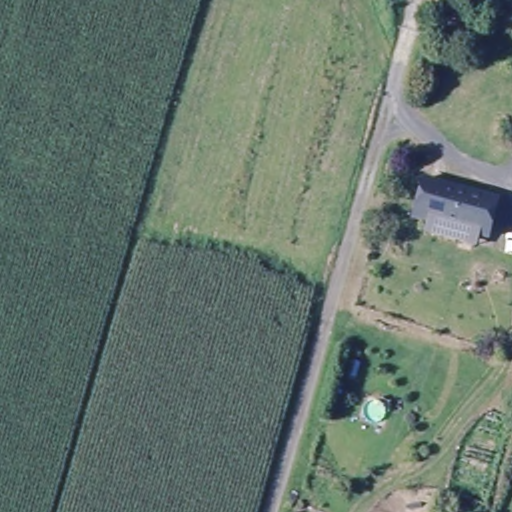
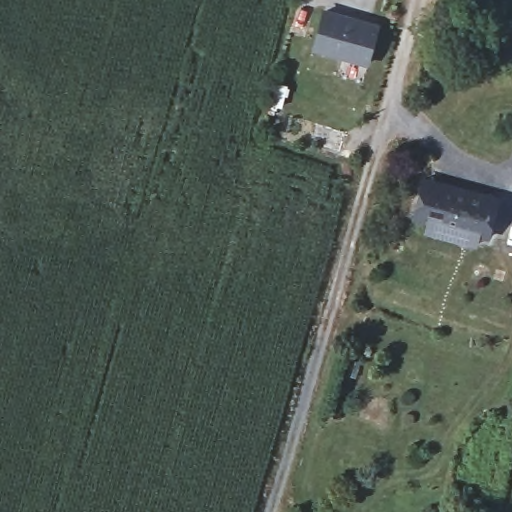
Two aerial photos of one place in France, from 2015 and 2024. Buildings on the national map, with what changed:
new [(308,55),(319,15),(374,31),(363,70),(358,89),(335,82),(340,64),(308,55)]
unchanged [(429,173),(506,195),(494,237),(482,234),(479,244),(425,230),(429,220),(416,217),(429,173)]

